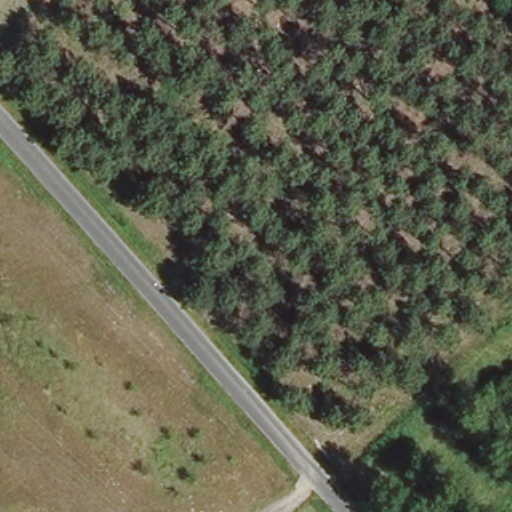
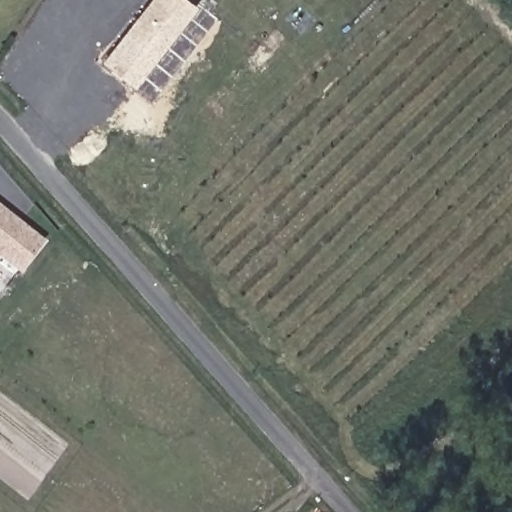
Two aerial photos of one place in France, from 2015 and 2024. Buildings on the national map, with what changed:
new [(135,88),(102,61),(150,0),(187,0),(197,8),(135,88)]
new [(44,242),(18,273),(0,258),(0,206),(44,242)]

